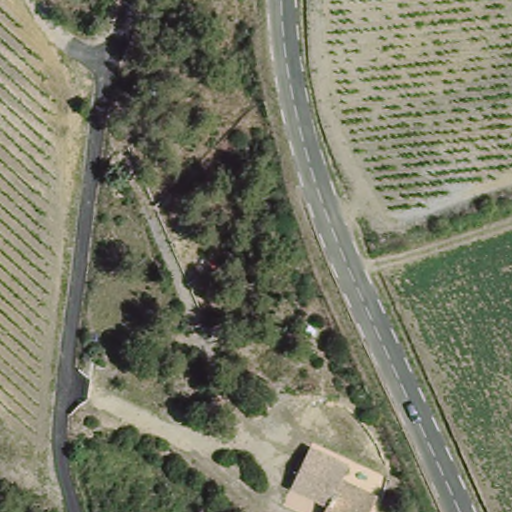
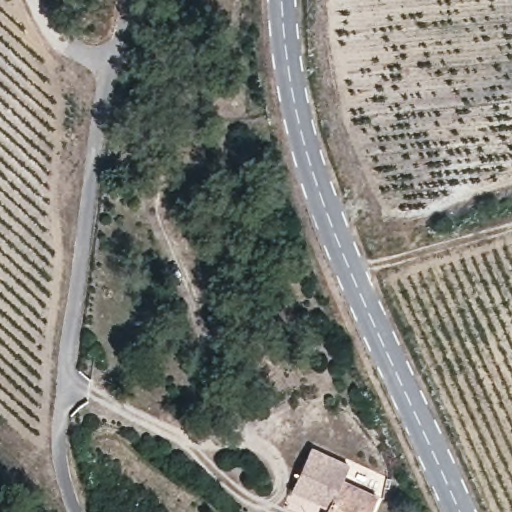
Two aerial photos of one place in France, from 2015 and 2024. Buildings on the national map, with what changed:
unchanged [(298,460),(311,440),(351,463),(342,478),(327,500),(306,487),(287,477),(298,460)]
unchanged [(368,512),(320,512),(327,500),(342,478),(375,500),(368,512)]

